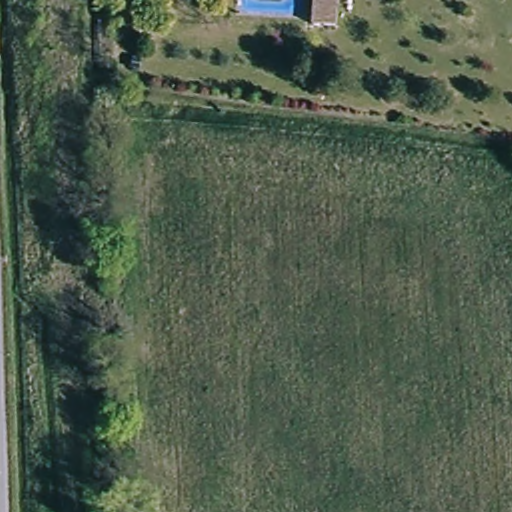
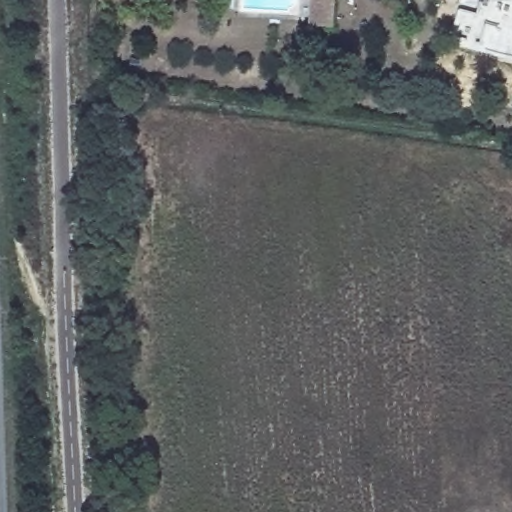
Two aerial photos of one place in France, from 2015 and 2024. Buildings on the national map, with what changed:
unchanged [(328,30),(306,26),(309,0),(332,0),(328,30)]
new [(460,9),(478,13),(480,0),(512,0),(512,58),(450,42),(460,9)]

